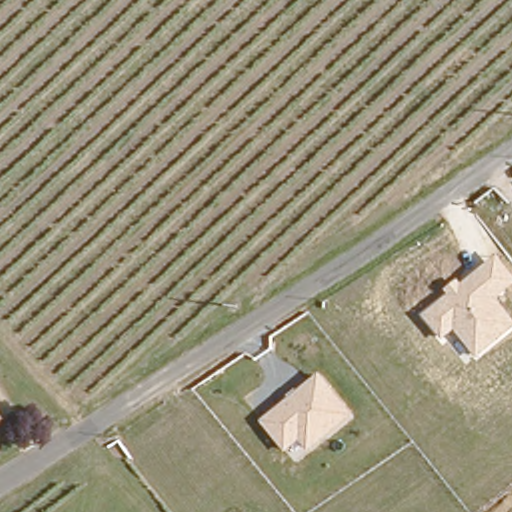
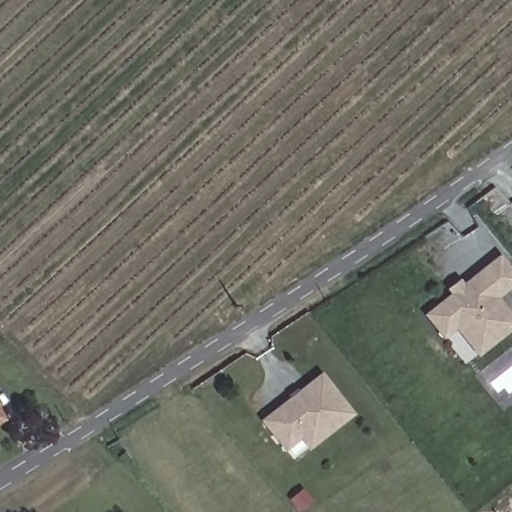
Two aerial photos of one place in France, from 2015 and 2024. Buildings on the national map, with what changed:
unchanged [(512,313),(512,331),(481,355),(456,328),(442,339),(424,317),(451,292),(447,287),(459,276),(464,282),(498,252),(512,269),(512,287),(499,297),(512,313)]
unchanged [(311,450),(302,439),(287,452),(261,421),(322,373),(354,415),(311,450)]

